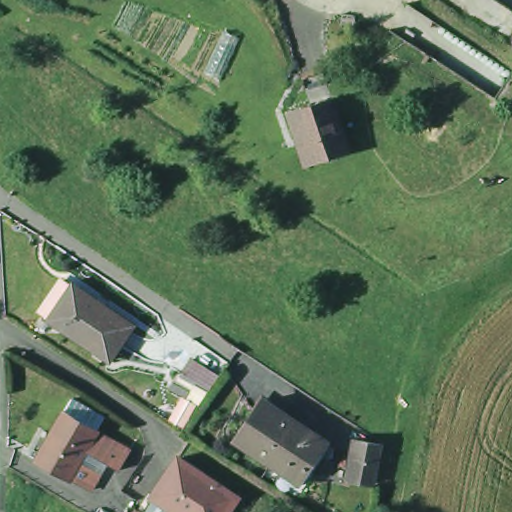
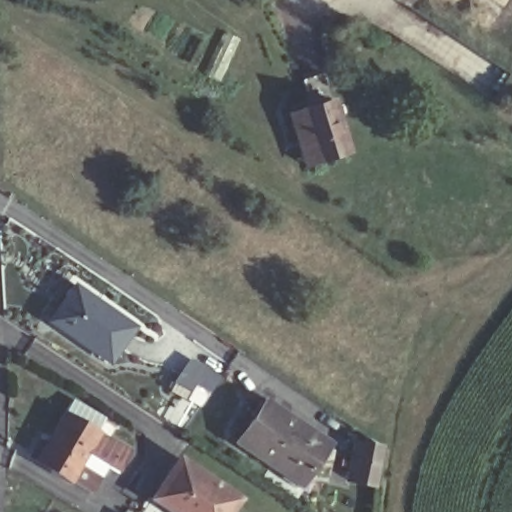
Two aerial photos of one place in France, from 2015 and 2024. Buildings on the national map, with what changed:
unchanged [(348,155),(310,164),(293,110),(330,102),(348,155)]
unchanged [(107,359),(46,318),(59,298),(70,282),(76,286),(130,324),(107,359)]
unchanged [(181,368),(189,355),(212,370),(204,383),(181,368)]
unchanged [(275,477),(279,471),(232,440),(259,399),(323,440),(302,472),(291,488),(275,477)]
unchanged [(66,482),(32,462),(60,413),(93,434),(124,454),(115,469),(103,462),(85,492),(66,482)]
unchanged [(346,482),(352,441),(375,444),(370,485),(346,482)]
unchanged [(175,456),(235,496),(225,512),(177,512),(150,494),(175,456)]

